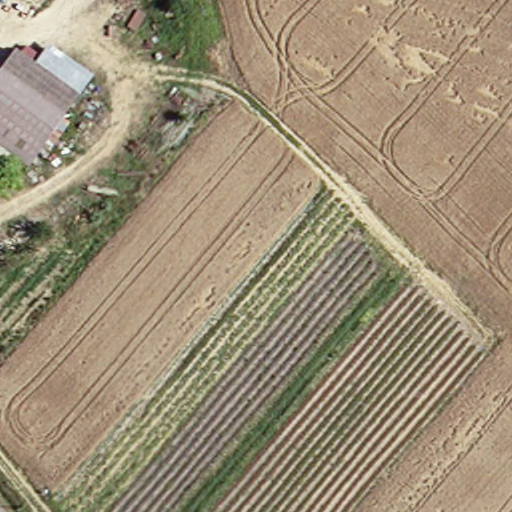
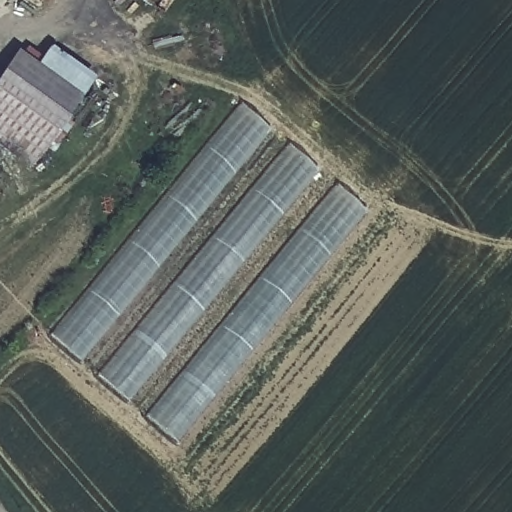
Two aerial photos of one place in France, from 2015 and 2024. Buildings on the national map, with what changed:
unchanged [(37,166),(0,137),(0,97),(33,57),(89,102),(37,166)]
new [(243,101),(272,129),(79,363),(50,335),(243,101)]
new [(98,374),(288,144),(316,168),(127,401),(98,374)]
new [(366,211),(178,442),(146,415),(336,184),(366,211)]

